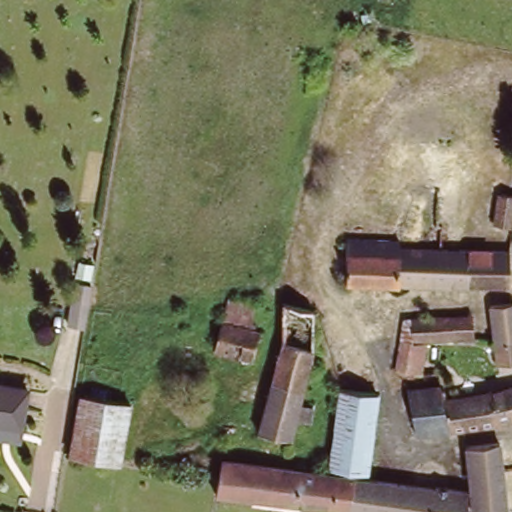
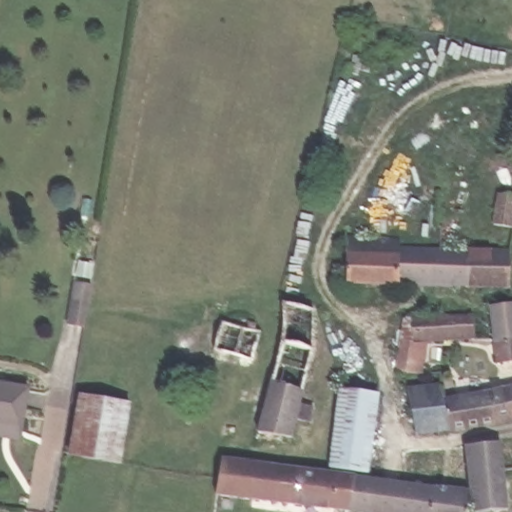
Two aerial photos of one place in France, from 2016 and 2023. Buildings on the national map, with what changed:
unchanged [(512,226),(489,222),(494,189),(512,192),(512,223),(512,226)]
unchanged [(508,253),(512,290),(341,286),(343,244),(396,245),(396,247),(396,250),(435,251),(508,253)]
unchanged [(281,304),(314,304),(314,347),(300,405),(311,408),(309,417),(298,415),(293,438),(286,437),(283,461),(222,453),(226,427),(243,429),(244,418),(258,420),(284,343),(280,312),(281,304)]
unchanged [(488,305),(512,304),(512,376),(500,378),(499,362),(490,363),(489,343),(488,305)]
unchanged [(416,316),(474,319),(473,339),(415,337),(416,316)]
unchanged [(223,320),(261,330),(253,360),(215,350),(218,338),(223,320)]
unchanged [(414,369),(399,368),(400,339),(414,340),(414,369)]
unchanged [(0,376),(29,380),(23,417),(0,414),(0,376)]
unchanged [(447,427),(412,428),(413,384),(447,384),(447,395),(447,427)]
unchanged [(331,462),(341,385),(381,390),(371,471),(331,467),(331,462)]
unchanged [(447,395),(512,385),(512,417),(450,426),(447,427),(447,395)]
unchanged [(127,407),(118,467),(67,459),(76,403),(76,399),(127,407)]
unchanged [(21,434),(0,431),(0,414),(23,417),(21,434)]
unchanged [(474,512),(474,447),(504,449),(506,470),(508,511),(501,512),(474,512)]
unchanged [(221,458),(282,466),(313,470),(330,472),(354,475),(349,511),(216,494),(221,458)]
unchanged [(471,490),(468,512),(353,512),(349,511),(354,475),(471,490)]

